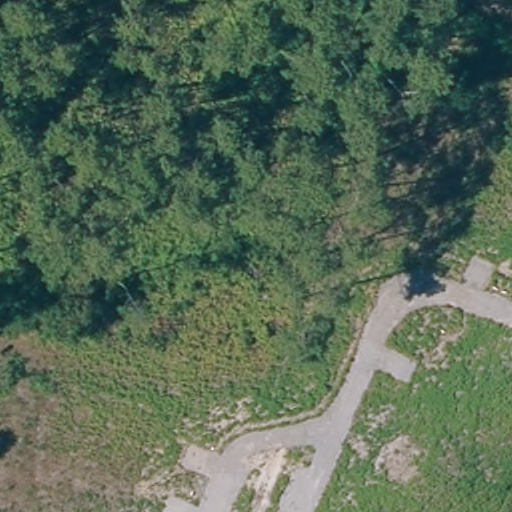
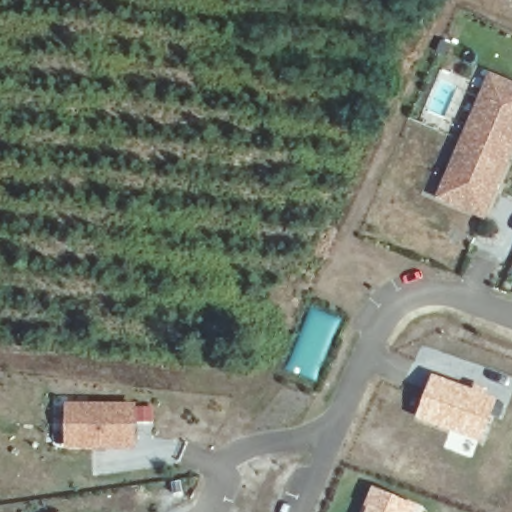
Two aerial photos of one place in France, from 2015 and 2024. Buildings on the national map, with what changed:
new [(438,198),(488,74),(512,83),(512,149),(483,217),(438,198)]
new [(432,374),(498,397),(479,443),(414,418),(432,374)]
new [(64,449),(66,404),(135,405),(135,450),(64,449)]
new [(373,488),(419,508),(417,512),(364,512),(373,488)]

